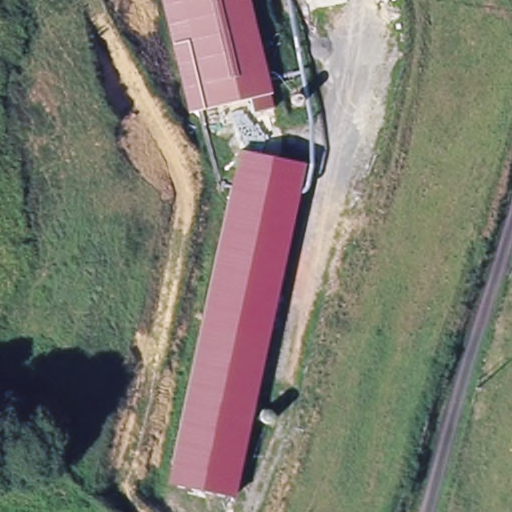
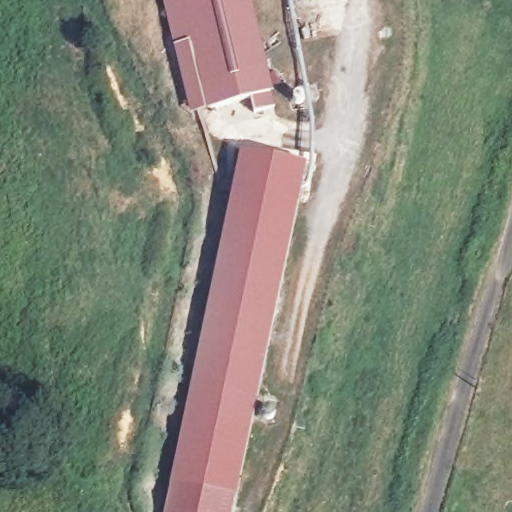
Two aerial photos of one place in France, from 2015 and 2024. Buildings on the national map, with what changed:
unchanged [(246,102),(203,109),(202,102),(201,97),(180,100),(160,0),(250,0),(264,66),(262,71),(266,91),(269,112),(246,115),(246,102)]
unchanged [(171,482),(240,151),(304,162),(235,497),(171,482)]
new [(165,512),(171,482),(235,497),(231,512),(165,512)]

